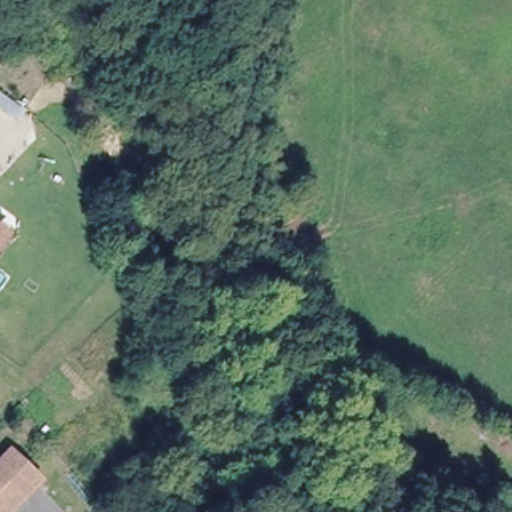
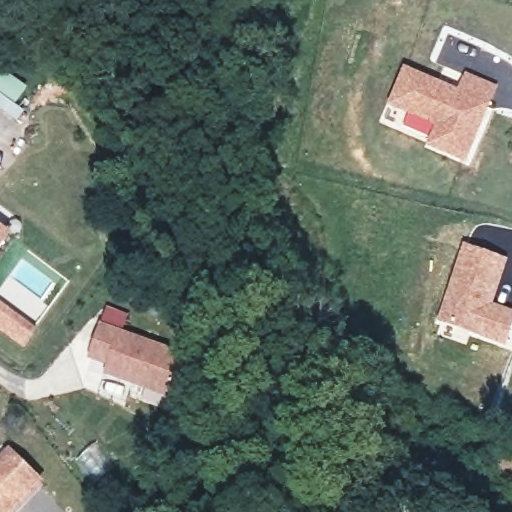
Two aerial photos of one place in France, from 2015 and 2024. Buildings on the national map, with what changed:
new [(459,87),(466,68),(499,85),(467,162),(427,144),(433,132),(406,120),(410,112),(389,103),(407,63),(459,87)]
new [(5,65),(29,89),(13,105),(23,114),(15,123),(0,108),(0,72),(5,65)]
unchanged [(16,230),(0,253),(0,218),(16,230)]
new [(494,301),(512,307),(512,330),(508,343),(440,322),(465,243),(507,257),(494,301)]
new [(133,313),(126,329),(190,351),(174,398),(105,373),(109,362),(91,357),(109,307),(133,313)]
unchanged [(6,449),(35,480),(2,512),(0,512),(0,455),(6,449)]

